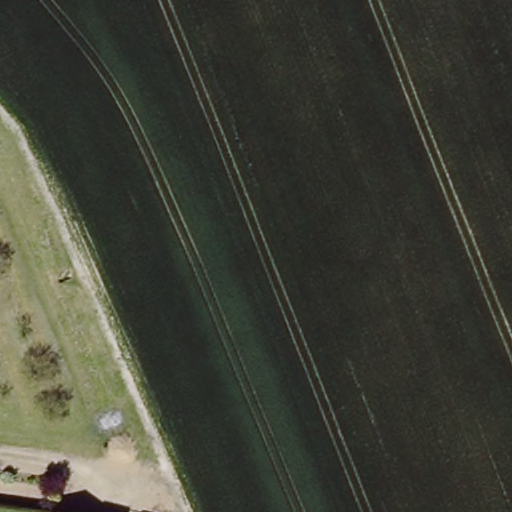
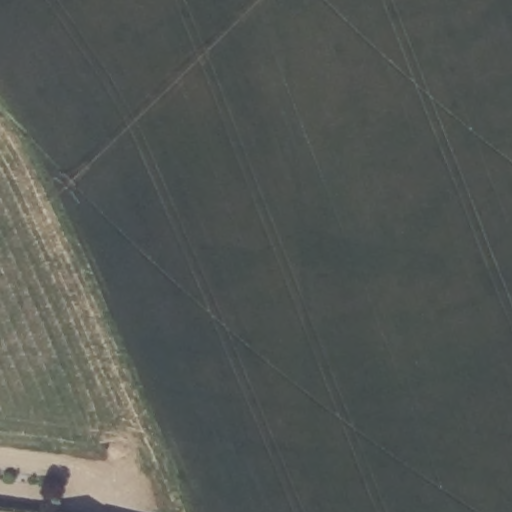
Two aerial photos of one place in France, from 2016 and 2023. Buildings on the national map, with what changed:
unchanged [(51,512),(47,512),(47,511),(51,512)]

